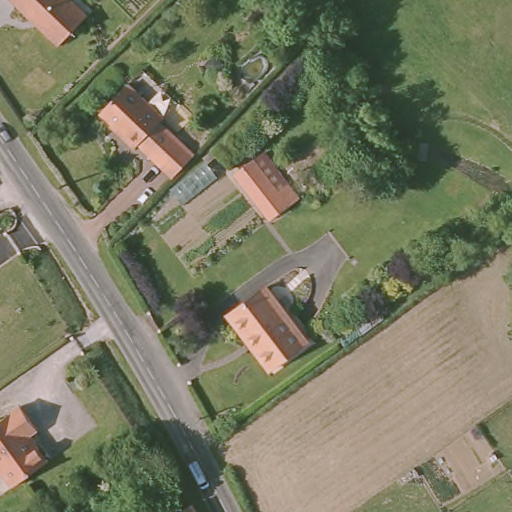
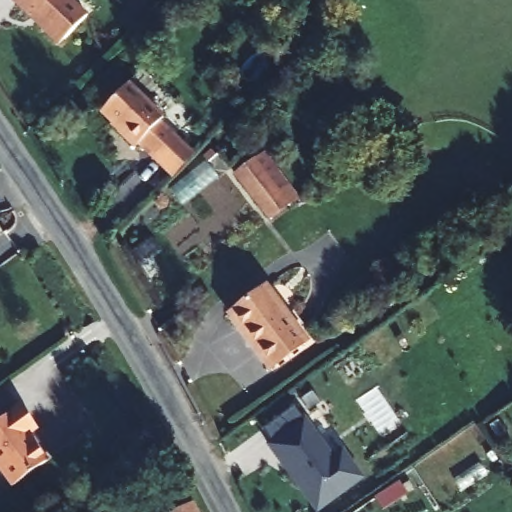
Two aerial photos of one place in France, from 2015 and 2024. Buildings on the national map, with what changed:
unchanged [(99,18),(64,50),(14,0),(81,0),(99,18)]
unchanged [(130,84),(166,118),(162,122),(195,153),(172,177),(139,145),(135,149),(100,115),(130,84)]
unchanged [(305,201),(275,222),(239,181),(269,159),(305,201)]
unchanged [(232,315),(265,287),(307,341),(273,366),(232,315)]
unchanged [(33,434),(49,460),(15,480),(0,456),(0,419),(24,404),(40,428),(33,434)]
new [(263,430),(295,406),(305,418),(273,442),(263,430)]
new [(333,457),(343,450),(363,477),(318,511),(270,445),(305,418),(333,457)]
unchanged [(194,512),(174,512),(190,503),(194,512)]

